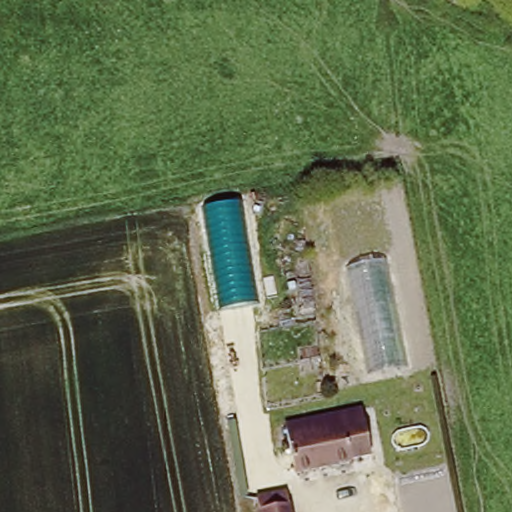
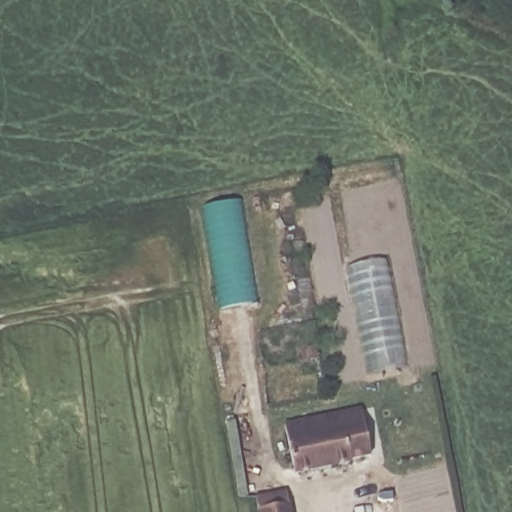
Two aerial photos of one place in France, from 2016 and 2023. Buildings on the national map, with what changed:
unchanged [(221,312),(204,207),(241,201),(258,303),(221,312)]
unchanged [(349,267),(381,260),(404,367),(371,376),(349,267)]
unchanged [(286,449),(283,426),(366,413),(374,459),(279,476),(274,451),(286,449)]
unchanged [(288,512),(261,512),(260,505),(285,499),(288,512)]

